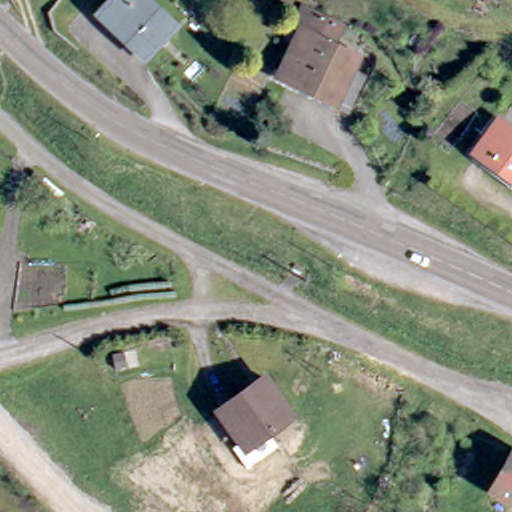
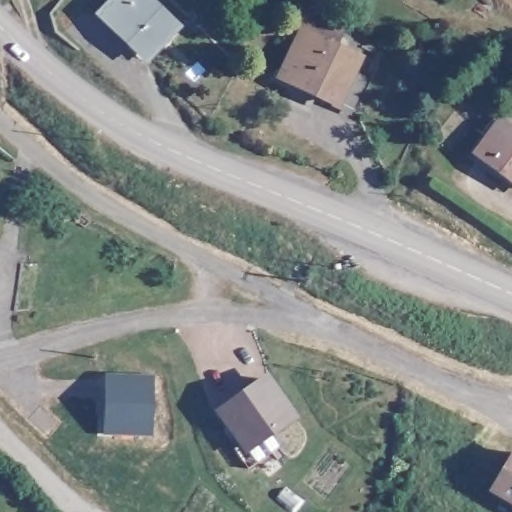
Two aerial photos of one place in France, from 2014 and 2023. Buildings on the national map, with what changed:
unchanged [(97,17),(114,0),(144,0),(173,27),(142,60),(97,17)]
unchanged [(328,19),(320,35),(349,50),(342,61),(358,70),(343,104),(281,74),(295,45),(287,40),(304,6),(328,19)]
unchanged [(486,140),(480,136),(493,120),(498,124),(512,134),(512,186),(473,156),(486,140)]
new [(105,390),(105,375),(115,375),(153,376),(150,432),(113,431),(102,430),(103,415),(105,390)]
unchanged [(266,382),(293,420),(246,453),(219,416),(266,382)]
unchanged [(512,475),(512,506),(498,498),(512,475)]

